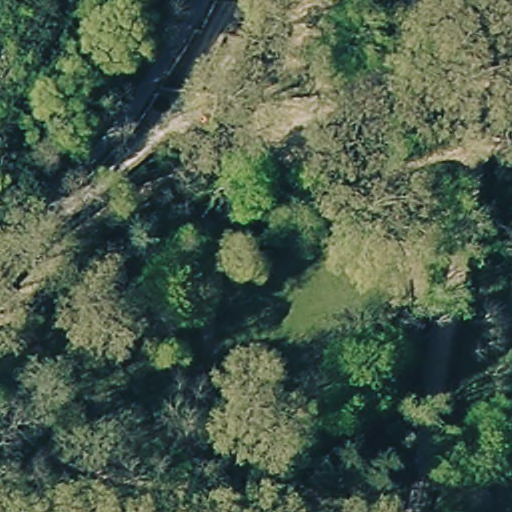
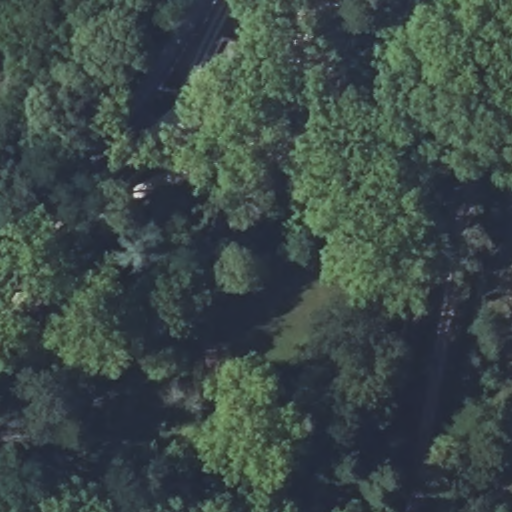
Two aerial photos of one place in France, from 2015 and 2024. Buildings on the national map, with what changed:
unchanged [(198,101),(227,42),(256,47),(243,109),(220,104),(198,101)]
unchanged [(116,93),(87,73),(100,57),(126,79),(116,93)]

